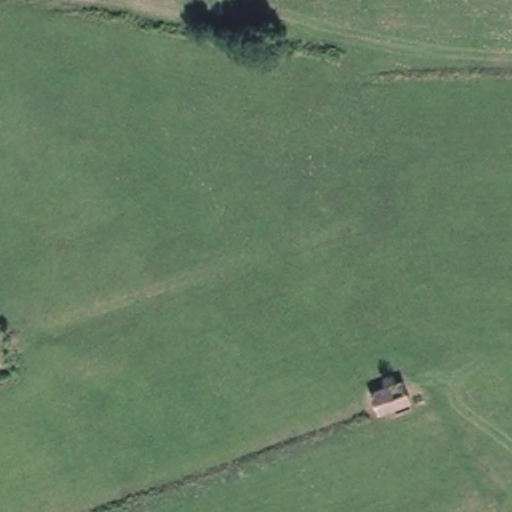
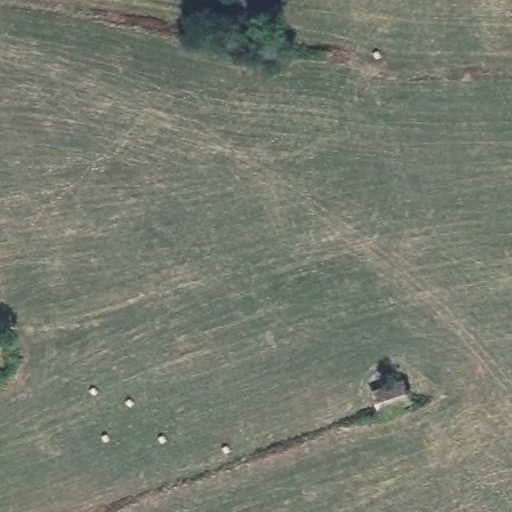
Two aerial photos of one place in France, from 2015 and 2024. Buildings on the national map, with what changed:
unchanged [(412,404),(376,413),(365,389),(398,376),(412,404)]

